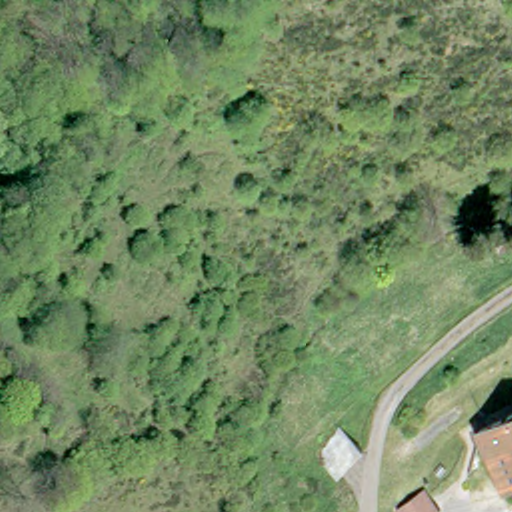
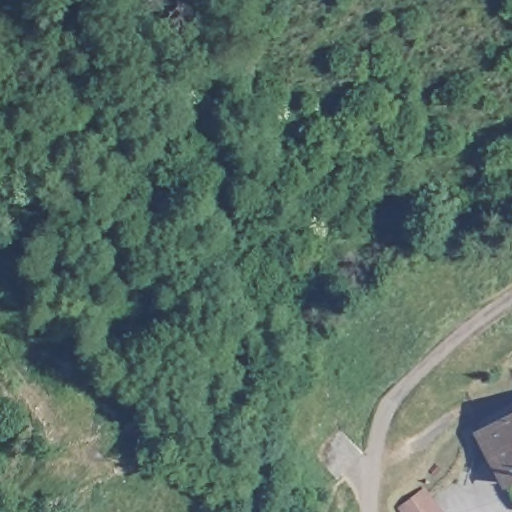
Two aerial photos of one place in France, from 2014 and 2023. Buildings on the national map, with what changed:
unchanged [(481,434),(512,417),(512,483),(509,485),(481,434)]
unchanged [(343,483),(326,467),(319,461),(346,437),(359,452),(364,461),(343,483)]
unchanged [(446,512),(415,512),(442,491),(453,506),(446,512)]

